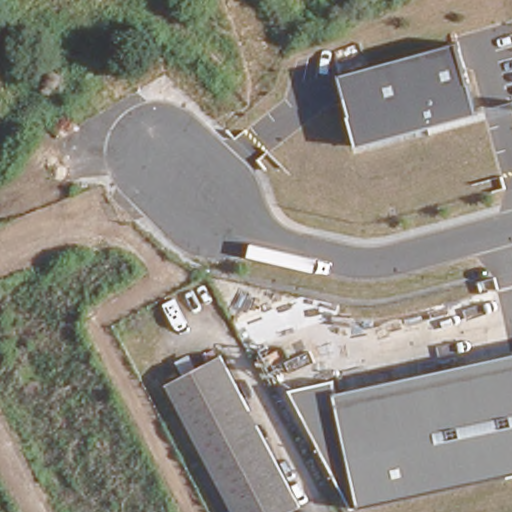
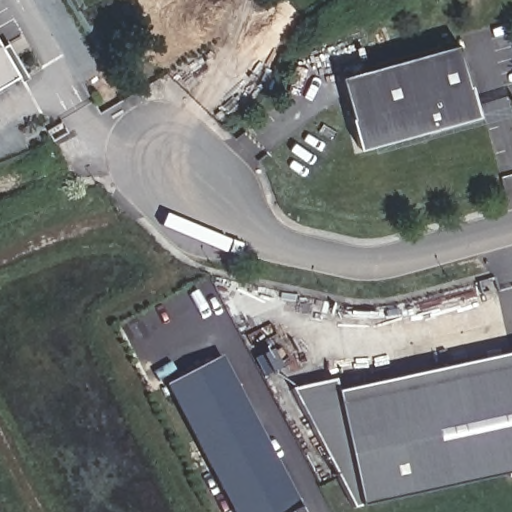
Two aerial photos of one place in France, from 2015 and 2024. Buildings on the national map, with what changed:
new [(0,89),(0,38),(21,77),(0,89)]
unchanged [(478,112),(359,145),(343,75),(458,43),(478,112)]
unchanged [(335,381),(338,392),(512,356),(512,473),(360,507),(353,507),(292,391),(335,381)]
unchanged [(292,512),(229,512),(160,391),(214,360),(298,508),(292,512)]

